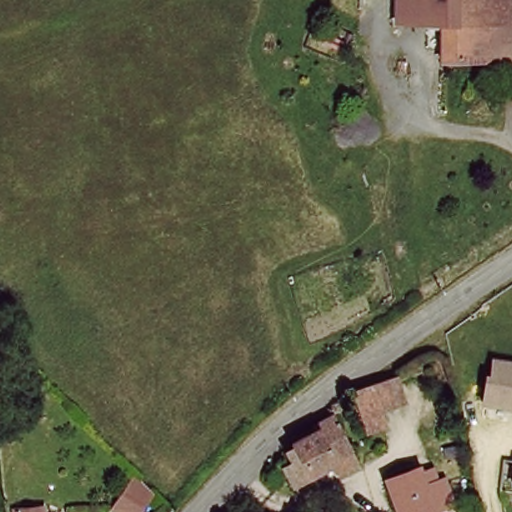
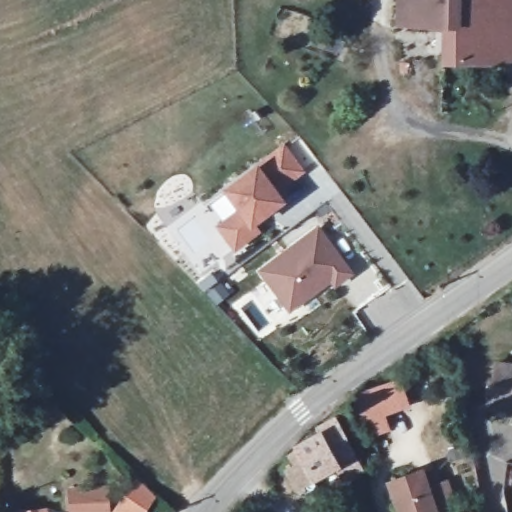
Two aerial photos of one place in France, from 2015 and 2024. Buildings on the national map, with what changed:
new [(395,26),(396,0),(405,0),(405,25),(395,26)]
unchanged [(444,66),(443,26),(405,25),(405,0),(512,0),(512,66),(444,66)]
new [(215,227),(237,210),(222,189),(257,163),(285,145),(306,172),(280,194),(287,202),(256,225),(261,232),(235,253),(215,227)]
new [(334,289),(330,282),(290,312),(258,271),(319,226),(354,274),(334,289)]
unchanged [(491,390),(490,383),(503,383),(500,369),(512,369),(512,415),(493,414),(491,390)]
unchanged [(369,431),(354,397),(381,384),(392,378),(408,403),(381,422),(369,431)]
new [(335,470),(322,477),(326,485),(300,497),(295,492),(283,470),(294,465),(287,455),(295,448),(294,446),(317,433),(315,428),(336,416),(365,470),(341,482),(335,470)]
demolished [(302,438),(325,426),(340,458),(317,471),(302,438)]
unchanged [(505,467),(504,445),(512,446),(512,467),(505,467)]
unchanged [(420,464),(438,512),(400,512),(388,477),(420,464)]
unchanged [(505,467),(512,467),(512,487),(506,487),(505,467)]
unchanged [(139,512),(129,512),(115,498),(142,471),(161,490),(139,512)]

